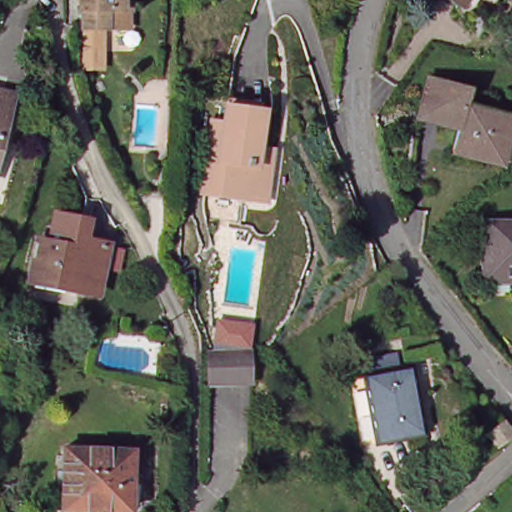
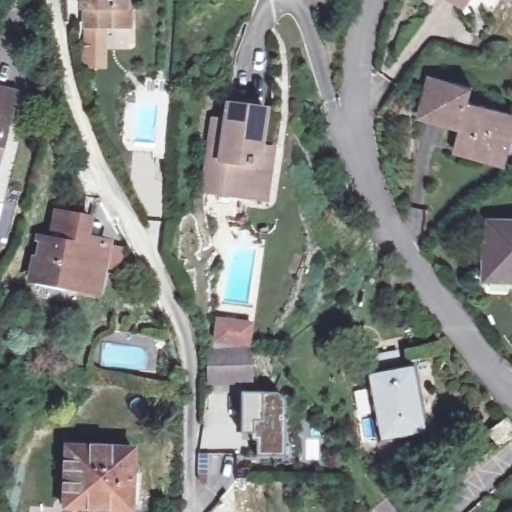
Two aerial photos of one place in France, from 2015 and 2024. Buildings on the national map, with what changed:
unchanged [(86,4),(83,3),(83,0),(126,0),(125,4),(117,3),(117,21),(105,20),(86,20),(86,4)]
unchanged [(454,0),(460,0),(458,3),(454,0)]
unchanged [(472,86),(470,100),(512,112),(512,122),(510,130),(505,148),(497,153),(495,150),(485,155),(455,147),(461,123),(452,121),(423,113),(433,74),(472,86)]
unchanged [(13,91),(20,93),(12,121),(0,164),(0,88),(13,91)]
unchanged [(244,199),(205,194),(212,144),(215,120),(226,122),(227,106),(265,112),(260,153),(272,154),(271,164),(267,195),(265,202),(244,199)]
unchanged [(77,219),(73,236),(82,239),(82,244),(102,248),(91,295),(27,281),(35,244),(47,246),(53,214),(77,219)]
unchanged [(491,220),(512,221),(512,278),(486,277),(486,244),(491,244),(491,220)]
unchanged [(427,427),(379,435),(365,367),(363,354),(378,351),(399,347),(402,362),(414,359),(427,427)]
unchanged [(245,381),(211,383),(210,352),(250,350),(252,374),(252,381),(245,381)]
new [(277,390),(282,403),(282,454),(254,454),(254,433),(239,433),(238,391),(277,390)]
unchanged [(507,420),(512,426),(512,433),(511,433),(500,442),(492,432),(507,420)]
unchanged [(133,475),(135,475),(133,509),(118,508),(85,507),(73,506),(65,506),(65,498),(67,445),(134,448),(133,475)]

